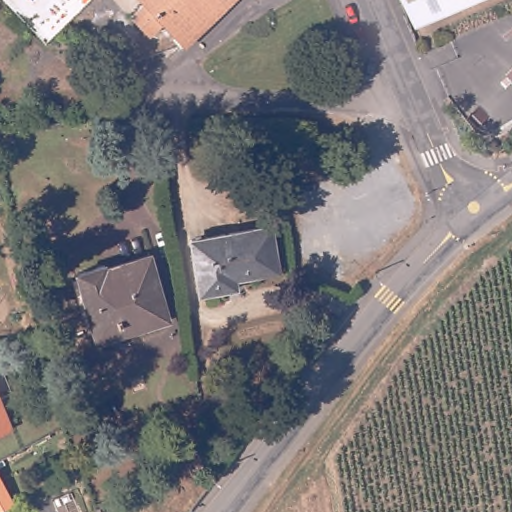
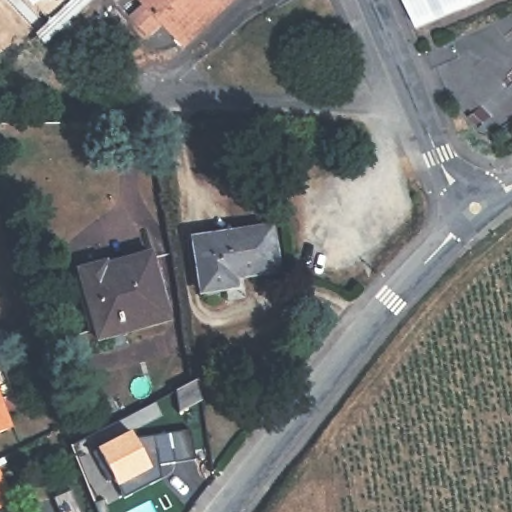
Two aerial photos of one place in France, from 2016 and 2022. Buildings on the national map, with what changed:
unchanged [(45,46),(2,0),(95,0),(45,46)]
unchanged [(179,50),(159,29),(146,41),(127,22),(142,9),(133,0),(233,0),(179,50)]
unchanged [(416,14),(410,0),(449,0),(416,14)]
unchanged [(275,260),(234,268),(236,284),(202,290),(192,236),(268,224),(275,260)]
unchanged [(100,339),(77,269),(105,260),(109,270),(154,257),(172,318),(100,339)]
unchanged [(0,429),(0,396),(11,425),(0,429)]
new [(116,487),(96,448),(130,431),(134,438),(154,435),(190,430),(194,458),(157,465),(160,479),(122,498),(116,487)]

